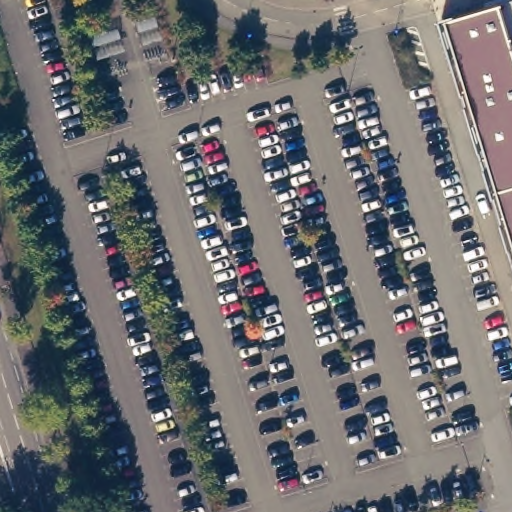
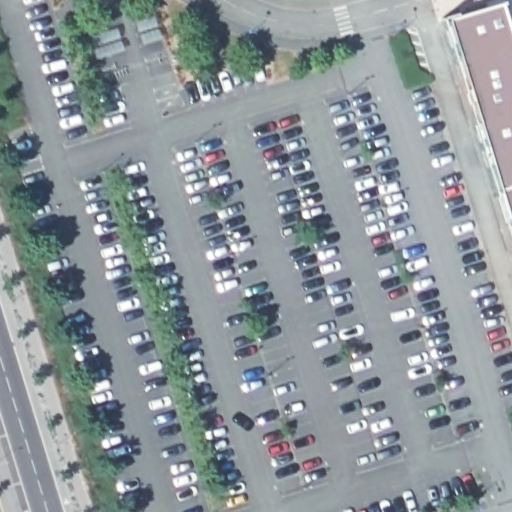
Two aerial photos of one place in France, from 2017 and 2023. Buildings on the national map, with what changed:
unchanged [(499,0),(512,0),(512,232),(448,17),(499,0)]
unchanged [(161,37),(142,44),(136,23),(154,17),(161,37)]
unchanged [(124,50),(96,59),(89,37),(118,29),(124,50)]

